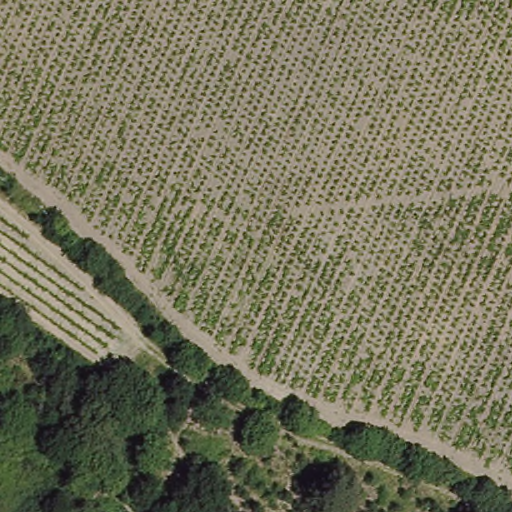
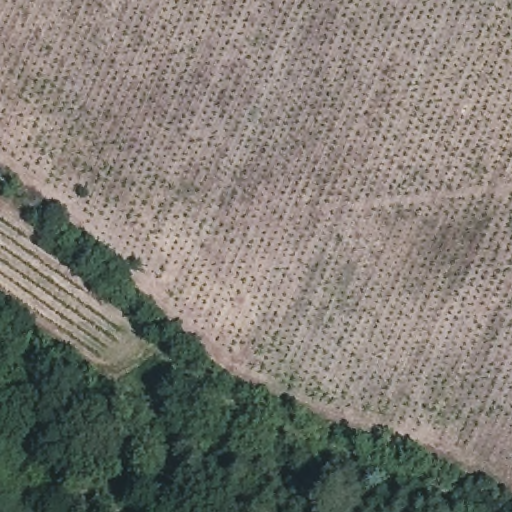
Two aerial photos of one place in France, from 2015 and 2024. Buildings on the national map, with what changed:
[]

